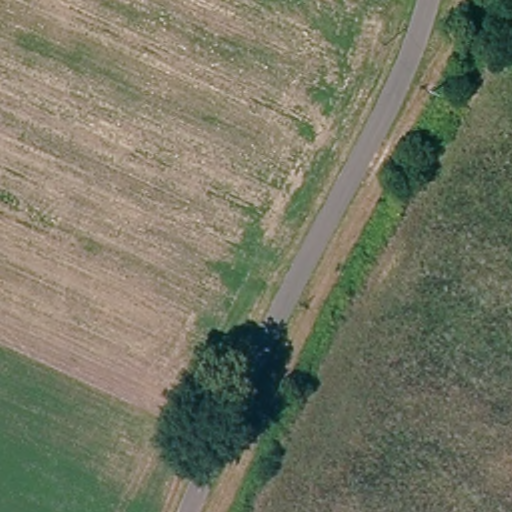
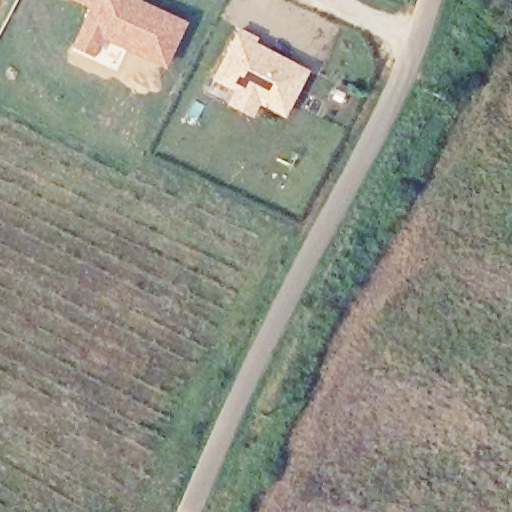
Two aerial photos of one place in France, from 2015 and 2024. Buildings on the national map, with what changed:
new [(186,22),(165,67),(101,39),(92,56),(70,45),(87,8),(71,0),(140,0),(186,22)]
new [(257,37),(255,41),(308,71),(285,118),(260,104),(251,117),(225,104),(232,91),(210,79),(237,27),(257,37)]

